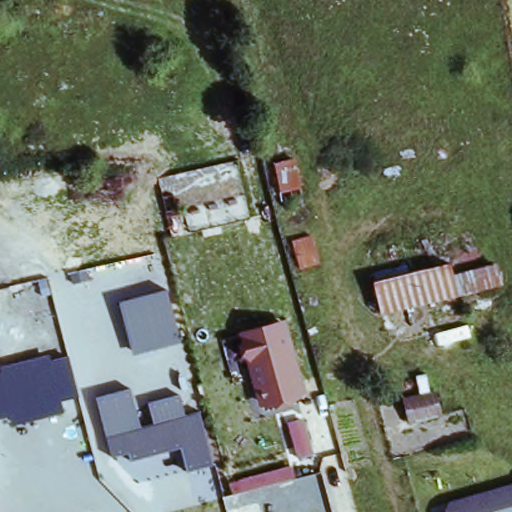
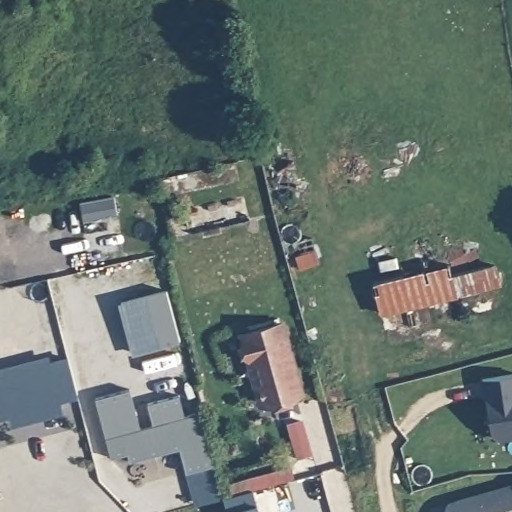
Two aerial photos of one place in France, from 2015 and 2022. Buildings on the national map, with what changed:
unchanged [(304,203),(281,210),(274,162),(294,160),(304,203)]
unchanged [(291,238),(313,232),(322,261),(299,268),(291,238)]
unchanged [(454,298),(381,316),(368,257),(441,240),(454,298)]
unchanged [(166,292),(180,344),(132,357),(118,303),(166,292)]
unchanged [(238,328),(285,317),(306,395),(258,406),(238,328)]
unchanged [(0,374),(0,371),(0,368),(48,357),(51,362),(68,360),(78,399),(60,403),(62,414),(11,427),(9,417),(0,420),(0,374)]
new [(512,438),(498,441),(492,436),(484,380),(512,376),(512,438)]
demolished [(413,417),(408,395),(435,389),(439,411),(413,417)]
unchanged [(131,391),(141,430),(153,427),(148,405),(178,397),(185,417),(199,414),(212,465),(186,472),(181,451),(129,463),(128,456),(110,461),(95,401),(131,391)]
unchanged [(297,450),(288,417),(303,412),(309,429),(314,445),(297,450)]
unchanged [(233,497),(228,483),(292,467),(296,480),(233,497)]
unchanged [(512,482),(512,512),(449,512),(446,501),(512,482)]
unchanged [(257,512),(233,512),(256,507),(257,512)]

